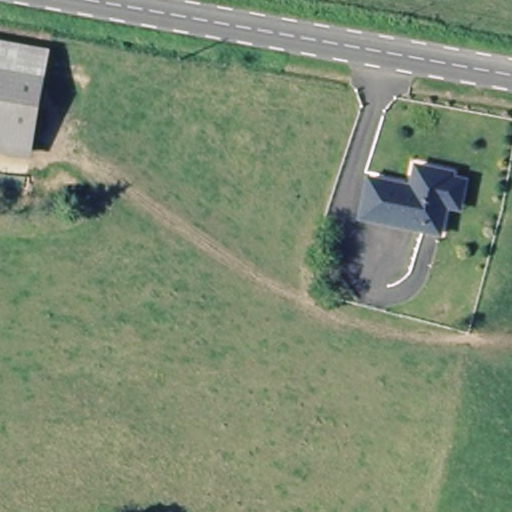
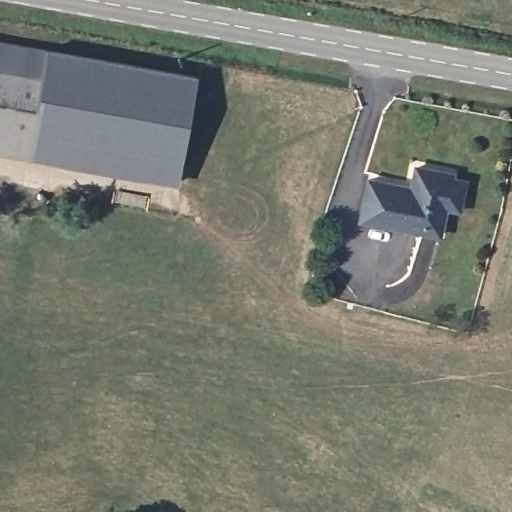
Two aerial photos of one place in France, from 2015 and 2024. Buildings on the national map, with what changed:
new [(197,76),(178,185),(0,154),(0,40),(197,76)]
unchanged [(459,206),(441,208),(434,236),(351,222),(362,171),(411,180),(413,160),(463,164),(459,206)]

